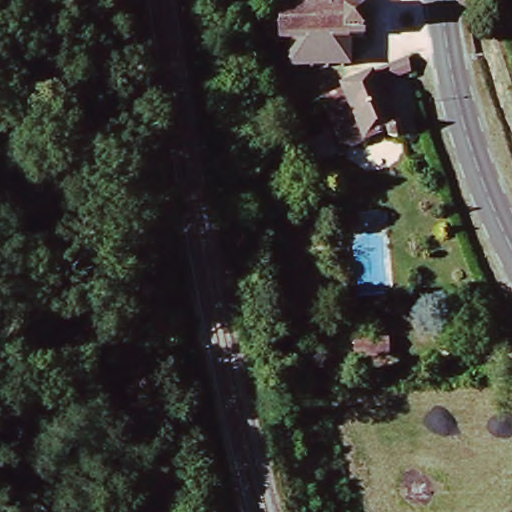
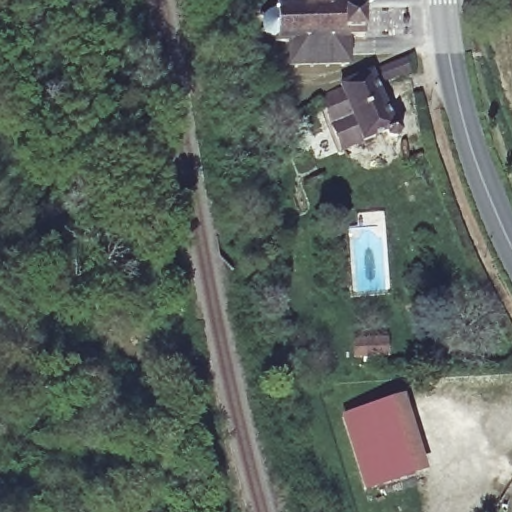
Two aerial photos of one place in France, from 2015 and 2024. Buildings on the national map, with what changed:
unchanged [(366,8),(366,38),(354,39),(353,66),(333,68),(332,71),(326,71),(324,68),(315,66),(314,71),(309,71),(308,67),(303,67),(300,71),(293,68),(293,48),(278,48),(277,41),(271,34),(268,38),(263,33),(266,30),(266,21),(259,15),(262,11),(266,13),(278,5),(279,0),(353,0),(354,9),(366,8)]
unchanged [(402,124),(407,129),(404,135),(401,139),(395,140),(387,130),(341,149),(322,100),(344,93),(343,85),(373,74),(409,60),(411,71),(377,85),(391,121),(402,124)]
unchanged [(382,338),(382,356),(364,356),(349,356),(347,339),(361,338),(382,338)]
new [(407,396),(430,471),(366,490),(344,413),(407,396)]

